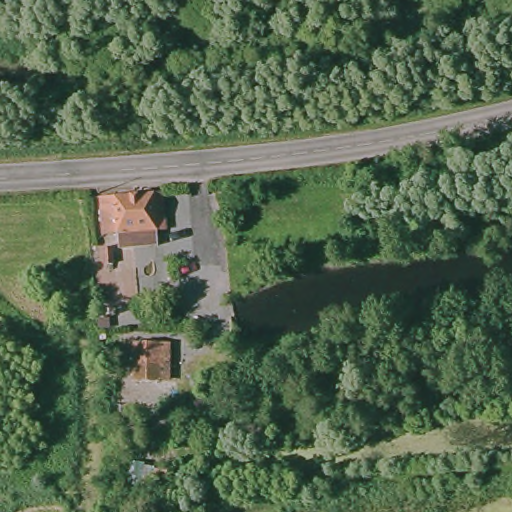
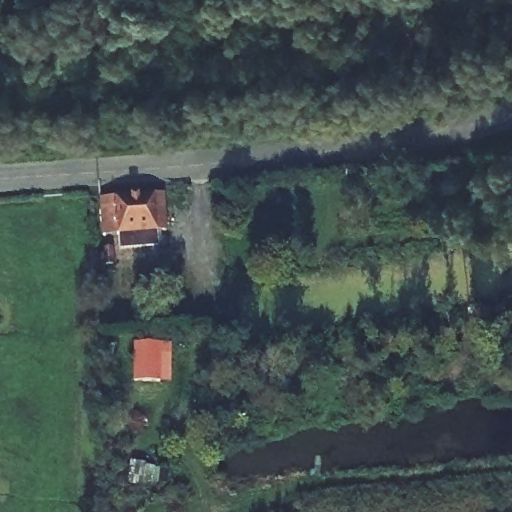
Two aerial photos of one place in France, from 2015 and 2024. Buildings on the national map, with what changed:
unchanged [(97,203),(106,202),(156,197),(157,208),(150,210),(153,236),(110,240),(101,241),(97,203)]
unchanged [(158,215),(174,212),(177,233),(161,236),(158,215)]
unchanged [(164,333),(164,399),(145,399),(145,374),(136,373),(136,338),(150,338),(150,333),(164,333)]

